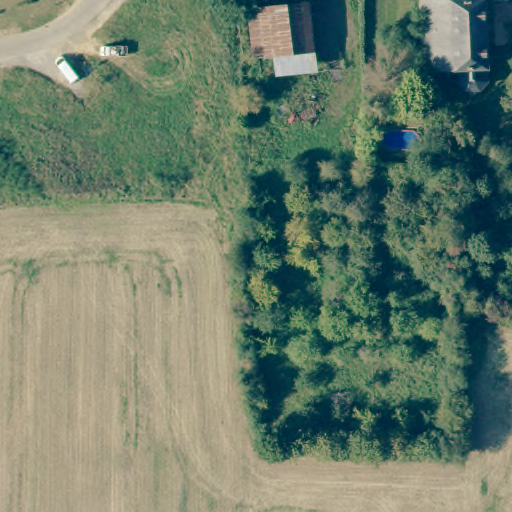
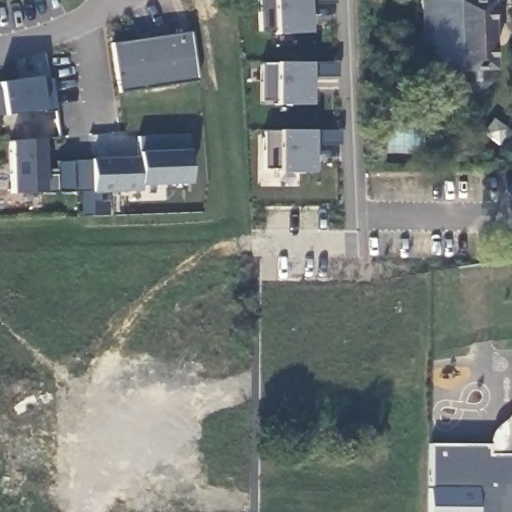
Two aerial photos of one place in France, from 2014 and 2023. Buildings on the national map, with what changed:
new [(310,33),(275,35),(273,29),(260,30),(259,0),(310,0),(310,33)]
unchanged [(488,66),(444,68),(443,73),(442,78),(440,80),(436,80),(433,79),(430,75),(428,72),(428,69),(420,69),(419,0),(487,0),(488,66)]
new [(190,34),(197,82),(119,94),(112,45),(190,34)]
new [(311,105),(275,106),(275,100),(263,99),(262,64),(275,63),(310,63),(311,105)]
unchanged [(55,111),(44,113),(43,110),(4,116),(2,116),(0,116),(0,92),(1,92),(0,86),(0,83),(39,77),(40,81),(50,80),(55,111)]
new [(315,173),(276,174),(276,167),(264,167),(264,132),(277,131),(314,130),(315,173)]
new [(185,151),(188,184),(141,186),(141,192),(92,194),(94,216),(82,217),(80,193),(73,193),(72,162),(90,160),(138,156),(138,151),(136,137),(187,136),(185,151)]
new [(10,142),(43,140),(44,171),(56,170),(56,163),(72,162),(73,193),(44,195),(44,193),(11,194),(10,142)]
new [(487,445),(487,455),(512,456),(512,512),(427,512),(427,444),(487,445)]

